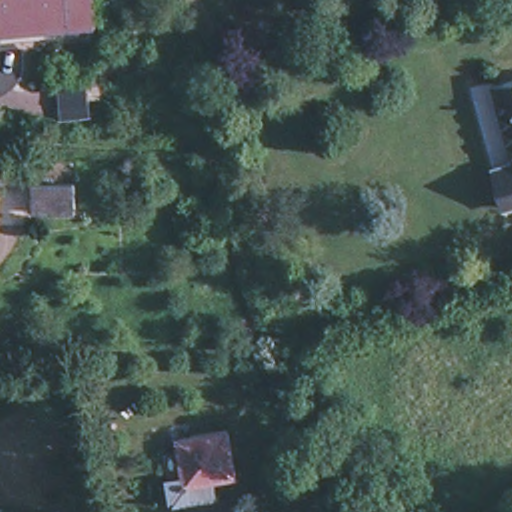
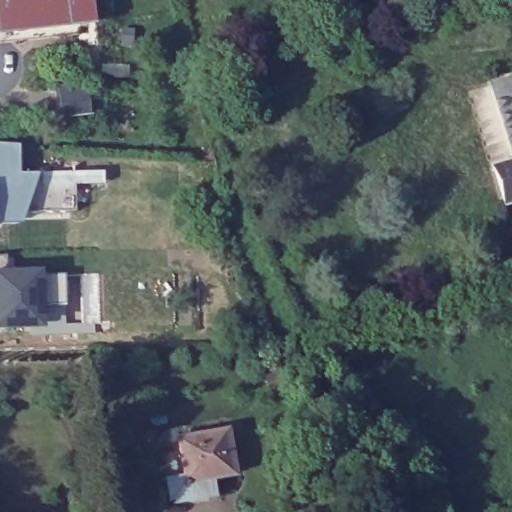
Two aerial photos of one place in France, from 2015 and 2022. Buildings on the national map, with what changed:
unchanged [(98,17),(81,19),(83,32),(25,37),(4,40),(0,40),(0,0),(97,0),(98,17)]
unchanged [(512,85),(512,161),(491,91),(512,85)]
unchanged [(62,117),(60,104),(58,90),(85,86),(88,100),(89,114),(62,117)]
new [(19,174),(38,173),(39,173),(39,183),(73,181),(74,210),(24,215),(21,224),(0,225),(0,144),(19,144),(19,174)]
unchanged [(504,207),(492,169),(512,163),(512,204),(504,207)]
demolished [(31,184),(74,184),(74,212),(31,213),(31,184)]
new [(6,274),(40,273),(40,277),(64,276),(65,335),(29,336),(29,331),(0,331),(0,258),(6,257),(6,274)]
unchanged [(172,506),(168,485),(185,482),(181,457),(178,445),(229,436),(236,482),(216,485),(218,503),(210,504),(175,509),(172,506)]

